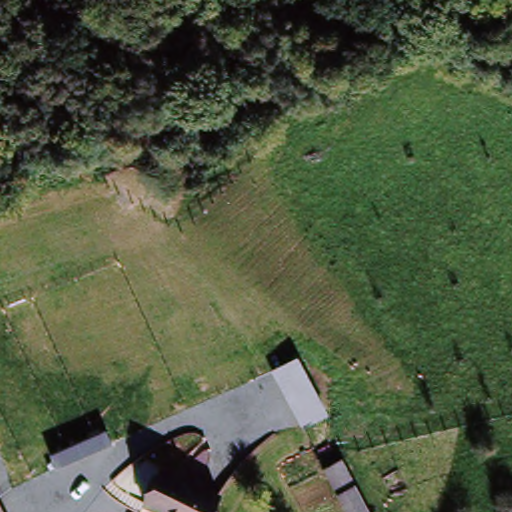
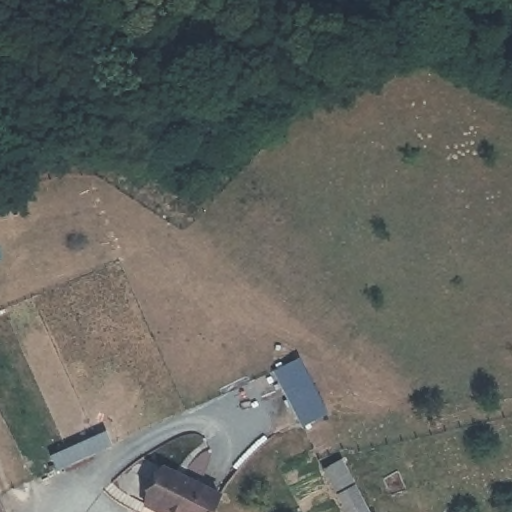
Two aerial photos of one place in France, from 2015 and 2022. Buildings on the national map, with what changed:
unchanged [(160,472),(217,495),(210,512),(147,512),(144,511),(160,472)]
unchanged [(368,508),(371,512),(348,512),(336,489),(353,479),(368,508)]

